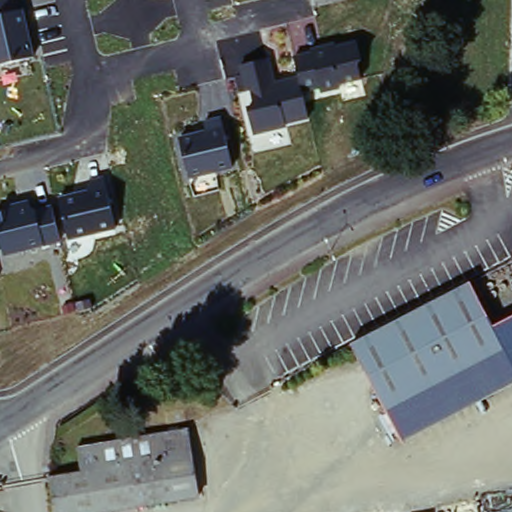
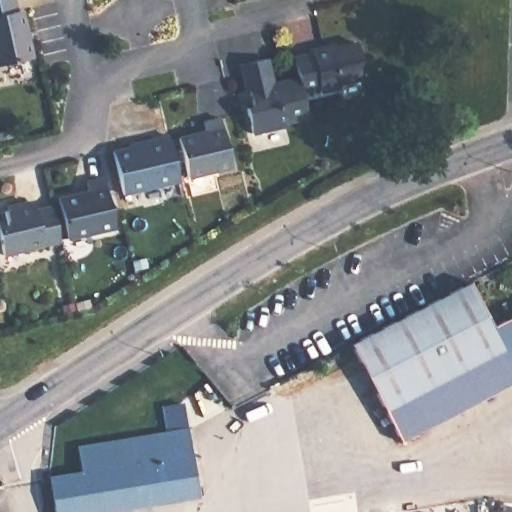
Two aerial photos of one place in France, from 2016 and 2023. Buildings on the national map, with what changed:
unchanged [(16,12),(23,10),(33,59),(0,66),(0,0),(14,0),(16,12)]
unchanged [(245,106),(254,105),(250,91),(246,92),(240,66),(269,58),(274,82),(299,77),(294,59),(312,56),(310,49),(336,42),(337,47),(357,42),(363,64),(359,65),(361,79),(339,85),(340,90),(320,94),(318,87),(303,90),(310,119),(284,124),(285,129),(252,136),(245,106)]
unchanged [(177,139),(206,132),(204,122),(221,117),(233,168),(188,178),(177,139)]
new [(151,140),(150,138),(166,134),(177,179),(121,192),(110,150),(151,140)]
unchanged [(58,197),(89,192),(86,182),(106,178),(119,230),(68,240),(58,197)]
unchanged [(9,206),(32,201),(34,208),(52,204),(60,242),(4,257),(2,246),(0,247),(0,214),(11,212),(9,206)]
unchanged [(468,282),(504,347),(385,411),(349,345),(468,282)]
unchanged [(504,347),(493,327),(512,317),(512,363),(504,347)]
unchanged [(385,411),(504,347),(512,363),(512,383),(402,442),(385,411)]
unchanged [(79,472),(76,448),(186,430),(197,497),(136,507),(137,512),(52,512),(47,478),(79,472)]

